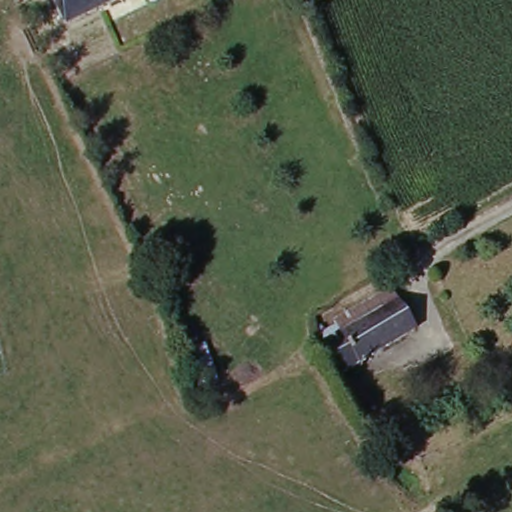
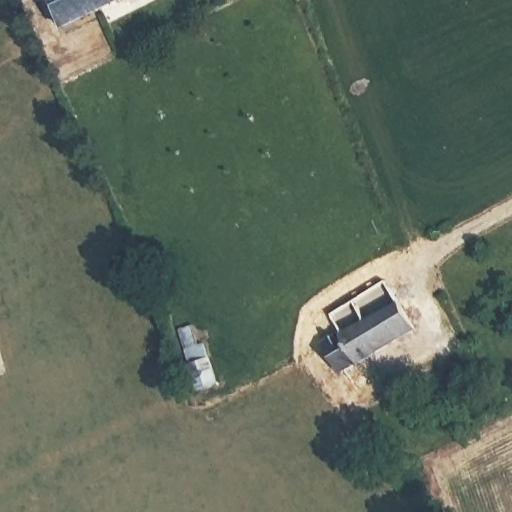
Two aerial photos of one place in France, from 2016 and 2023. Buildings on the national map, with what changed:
unchanged [(64,30),(50,0),(125,0),(64,30)]
unchanged [(416,331),(343,377),(321,342),(336,332),(333,325),(391,290),(416,331)]

